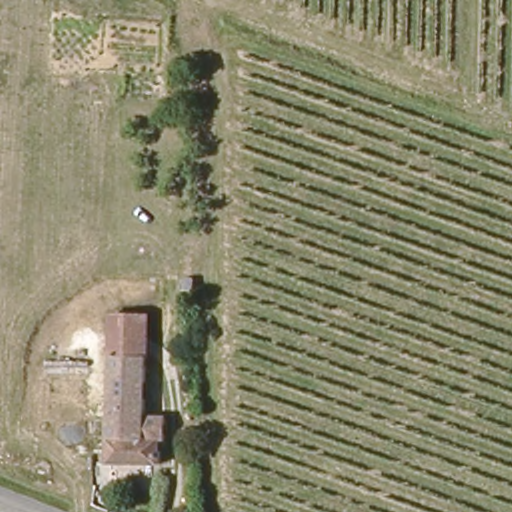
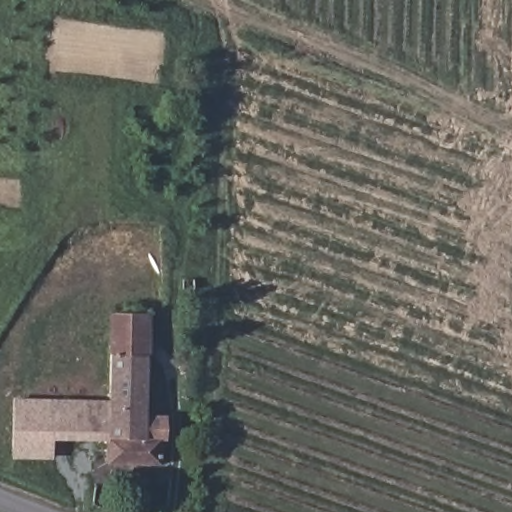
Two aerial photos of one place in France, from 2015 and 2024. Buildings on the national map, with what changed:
unchanged [(179,263),(191,263),(190,281),(179,281),(179,263)]
unchanged [(142,320),(142,361),(109,359),(109,319),(142,320)]
unchanged [(107,441),(108,400),(109,359),(142,361),(141,420),(169,422),(168,445),(162,444),(161,467),(107,464),(107,441)]
new [(13,398),(108,400),(107,441),(53,440),(52,460),(12,459),(13,398)]

